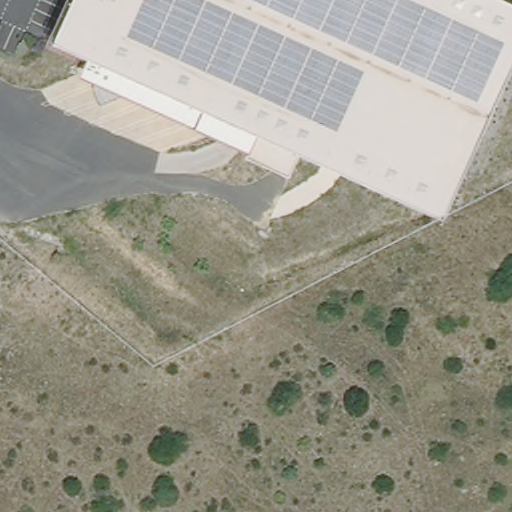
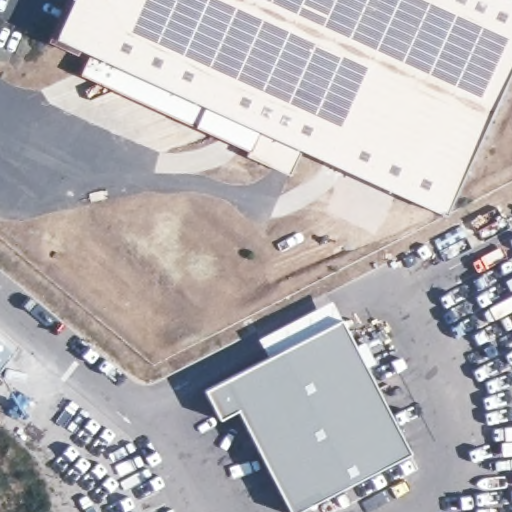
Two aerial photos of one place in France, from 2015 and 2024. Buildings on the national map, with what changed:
unchanged [(448,215),(305,150),(295,175),(82,72),(87,55),(55,36),(72,0),(512,0),(512,71),(448,215)]
new [(357,351),(367,347),(377,367),(368,372),(412,458),(304,512),(288,512),(239,413),(221,422),(206,393),(343,323),(357,351)]
new [(0,368),(0,339),(14,351),(0,368)]

